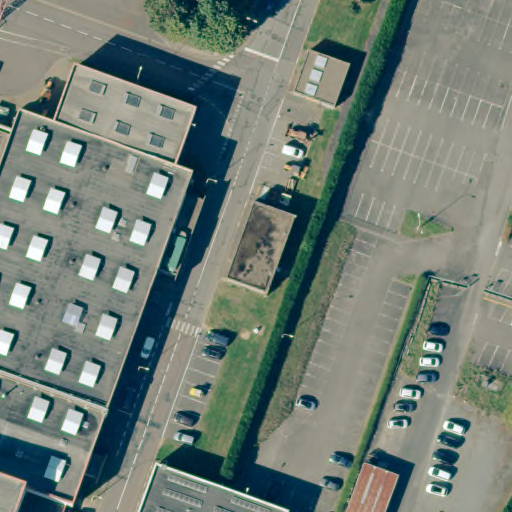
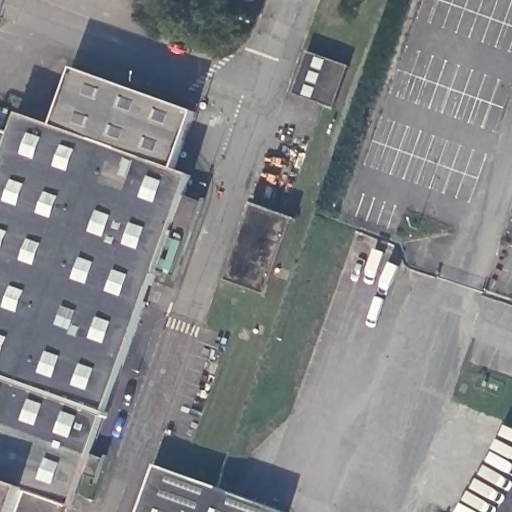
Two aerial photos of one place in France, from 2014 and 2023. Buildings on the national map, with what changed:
unchanged [(355,69),(341,109),(300,94),(315,55),(355,69)]
unchanged [(177,176),(190,180),(183,201),(201,207),(175,283),(155,276),(89,463),(101,468),(94,489),(81,484),(71,512),(0,512),(0,166),(10,138),(16,120),(51,132),(72,76),(196,120),(177,176)]
unchanged [(10,138),(0,166),(0,135),(10,138)]
unchanged [(290,217),(263,293),(222,278),(249,203),(290,217)]
demolished [(379,512),(340,512),(358,461),(393,474),(379,512)]
unchanged [(285,512),(141,512),(158,464),(286,509),(285,512)]

